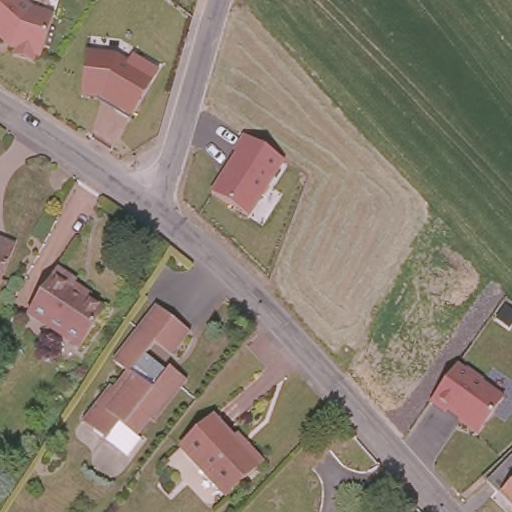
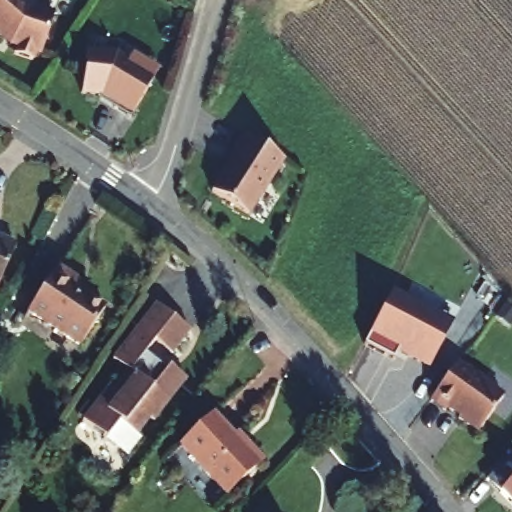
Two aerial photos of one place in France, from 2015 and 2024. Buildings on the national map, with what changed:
unchanged [(0,40),(0,0),(25,0),(33,7),(53,14),(40,57),(35,56),(35,62),(12,57),(13,50),(7,46),(0,40)]
unchanged [(158,72),(130,118),(99,99),(80,97),(87,51),(117,53),(129,60),(133,53),(158,72)]
unchanged [(232,152),(243,137),(285,162),(250,217),(211,192),(235,154),(232,152)]
unchanged [(0,278),(0,229),(20,240),(0,278)]
unchanged [(77,276),(75,280),(110,302),(84,341),(30,308),(58,263),(77,276)]
new [(431,368),(397,352),(394,358),(365,345),(393,289),(455,321),(431,368)]
unchanged [(160,306),(181,323),(187,328),(170,352),(160,346),(155,342),(145,354),(149,357),(135,372),(117,360),(160,306)]
unchanged [(168,366),(184,377),(153,417),(150,414),(136,431),(143,437),(130,453),(88,422),(85,420),(112,382),(120,388),(135,372),(149,357),(165,370),(168,366)]
unchanged [(503,397),(477,433),(447,412),(445,413),(431,402),(457,363),(465,369),(468,367),(485,379),(483,382),(503,397)]
unchanged [(237,442),(242,437),(259,457),(222,491),(179,440),(211,412),(237,442)]
unchanged [(507,496),(497,485),(512,468),(512,500),(507,496)]

